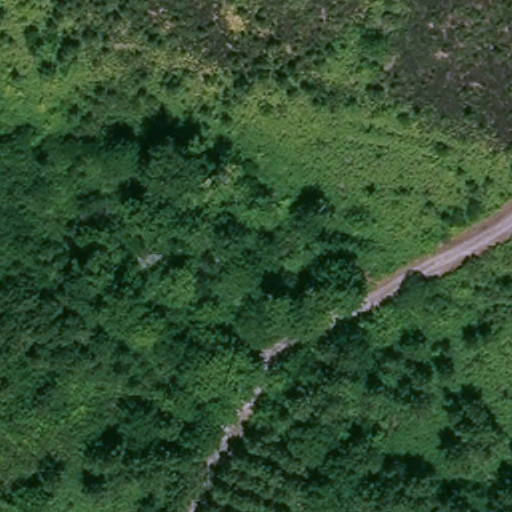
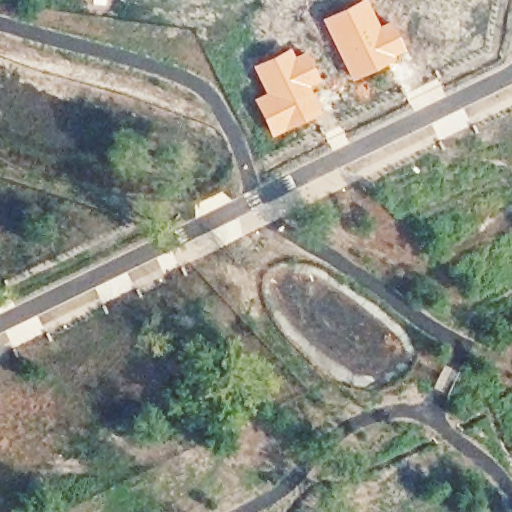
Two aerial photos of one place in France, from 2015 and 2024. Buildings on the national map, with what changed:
new [(353,0),(365,0),(376,24),(387,18),(401,48),(390,54),(392,58),(348,79),(319,18),(353,0)]
new [(287,46),(292,55),(303,49),(318,80),(306,86),(318,111),(269,135),(251,97),(263,91),(251,65),(287,46)]

